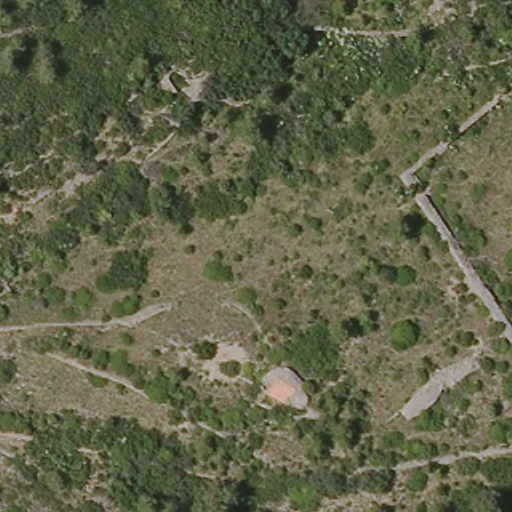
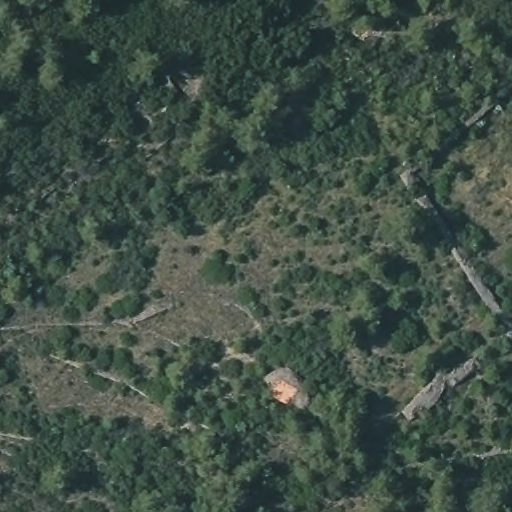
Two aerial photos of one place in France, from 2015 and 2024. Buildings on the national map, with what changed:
unchanged [(277,379),(295,390),(286,406),(268,393),(277,379)]

